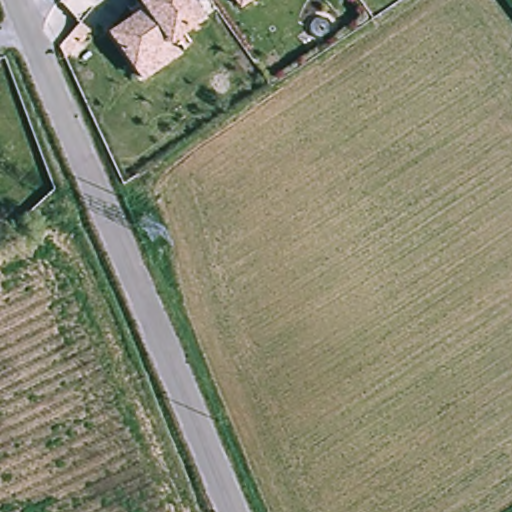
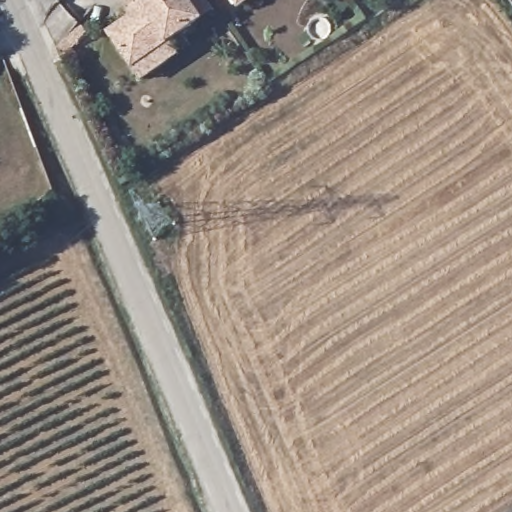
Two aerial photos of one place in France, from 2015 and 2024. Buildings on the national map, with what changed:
unchanged [(132,65),(107,30),(129,15),(126,10),(140,1),(139,0),(189,0),(201,16),(169,39),(178,54),(141,79),(132,65)]
unchanged [(234,0),(250,0),(240,7),(234,0)]

